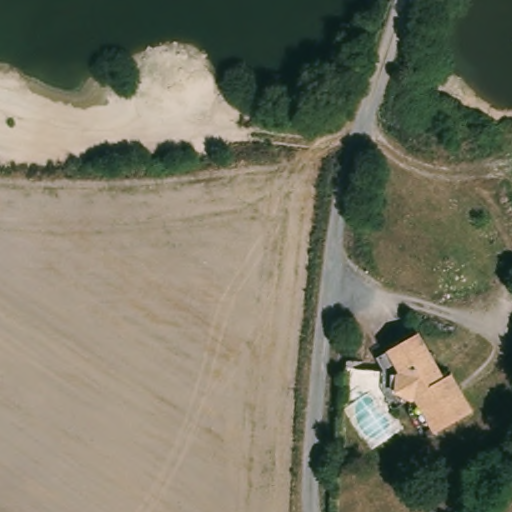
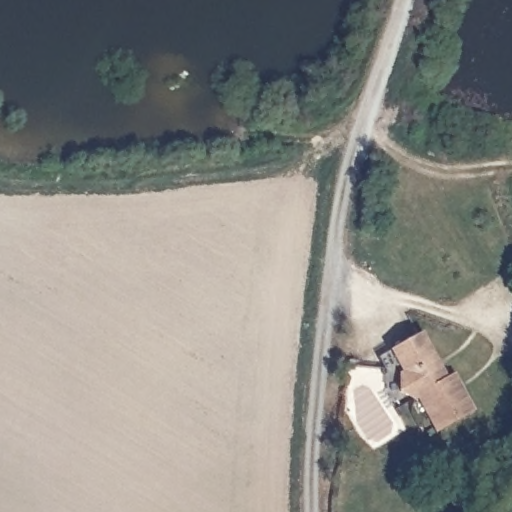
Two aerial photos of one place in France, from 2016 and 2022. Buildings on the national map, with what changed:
unchanged [(455,376),(476,412),(440,432),(421,397),(416,400),(398,410),(387,391),(389,370),(382,358),(395,350),(422,335),(448,380),(455,376)]

